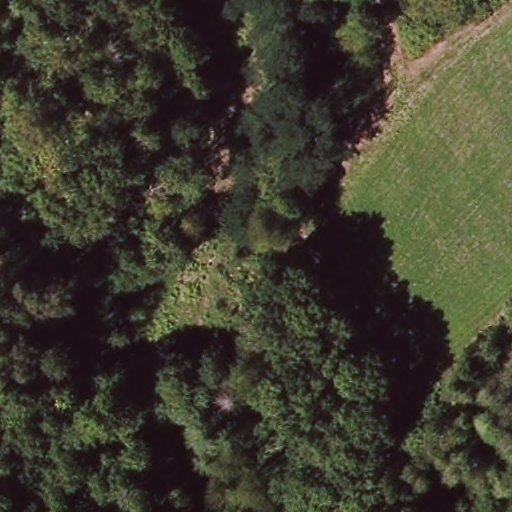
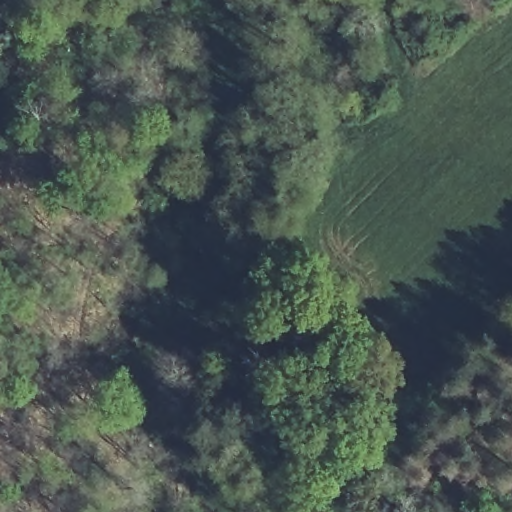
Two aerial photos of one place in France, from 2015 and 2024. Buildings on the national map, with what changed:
[]

